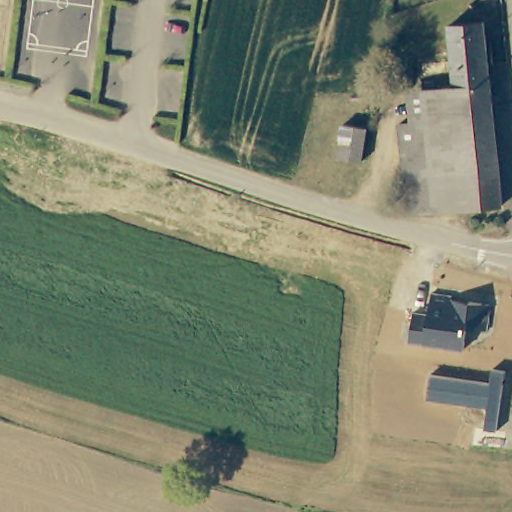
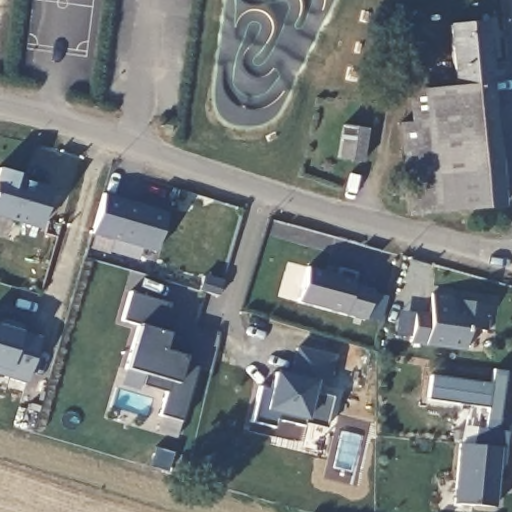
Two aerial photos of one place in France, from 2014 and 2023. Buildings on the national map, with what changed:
unchanged [(455,76),(449,19),(487,16),(490,74),(455,76)]
unchanged [(403,119),(428,117),(426,85),(446,83),(455,82),(455,76),(490,74),(498,211),(472,213),(472,207),(437,209),(437,207),(411,209),(403,119)]
new [(347,126),(371,130),(365,163),(342,159),(347,126)]
new [(13,179),(49,190),(38,229),(0,219),(0,169),(15,173),(13,179)]
new [(167,213),(154,253),(90,234),(102,194),(167,213)]
new [(308,267),(338,275),(340,268),(357,272),(355,284),(375,289),(367,321),(299,302),(308,267)]
new [(165,392),(140,385),(144,374),(126,369),(137,325),(120,319),(129,292),(167,303),(160,330),(171,332),(169,337),(187,342),(184,357),(181,363),(197,367),(182,420),(161,414),(165,392)]
unchanged [(416,311),(430,313),(433,292),(452,296),(452,299),(492,304),(488,331),(467,329),(463,350),(411,342),(416,311)]
new [(22,332),(40,338),(25,383),(0,376),(0,319),(24,325),(22,332)]
new [(260,387),(270,390),(275,369),(289,372),(297,346),(335,354),(329,385),(315,383),(307,420),(302,419),(302,426),(276,420),(273,427),(252,422),(260,387)]
unchanged [(491,385),(493,370),(505,372),(497,431),(485,429),(487,408),(428,399),(431,376),(491,385)]
new [(459,427),(485,429),(497,431),(508,432),(503,466),(500,465),(496,509),(452,505),(459,427)]

